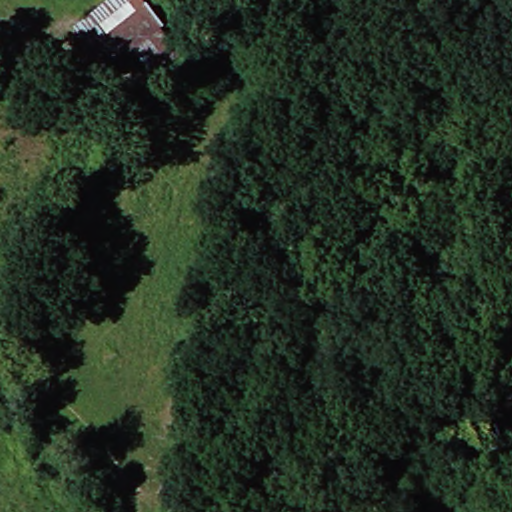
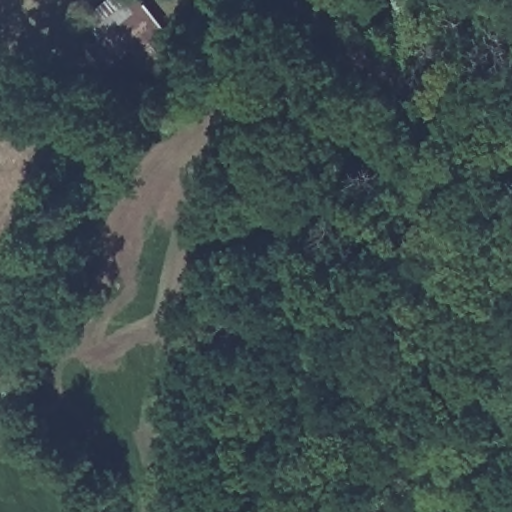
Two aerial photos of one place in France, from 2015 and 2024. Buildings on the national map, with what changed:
unchanged [(148,0),(166,25),(107,66),(73,27),(108,0),(148,0)]

